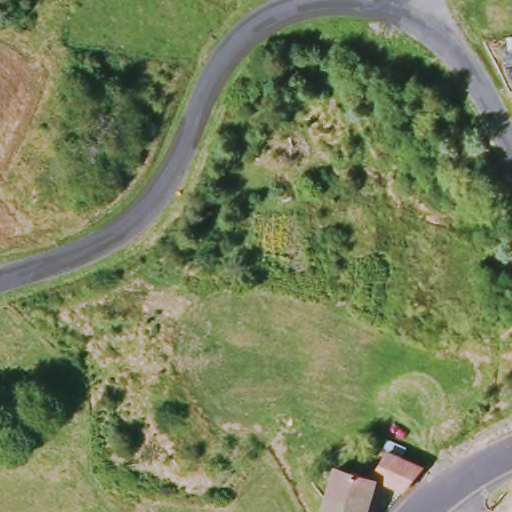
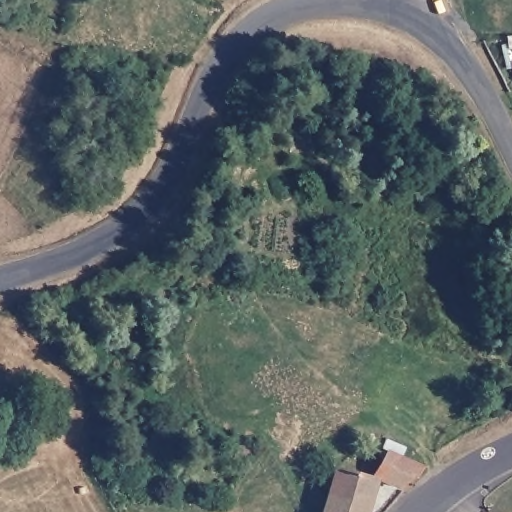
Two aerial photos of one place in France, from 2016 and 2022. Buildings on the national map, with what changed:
unchanged [(373,468),(384,450),(424,466),(402,488),(373,468)]
unchanged [(330,482),(334,468),(372,478),(367,494),(361,512),(320,512),(330,482)]

